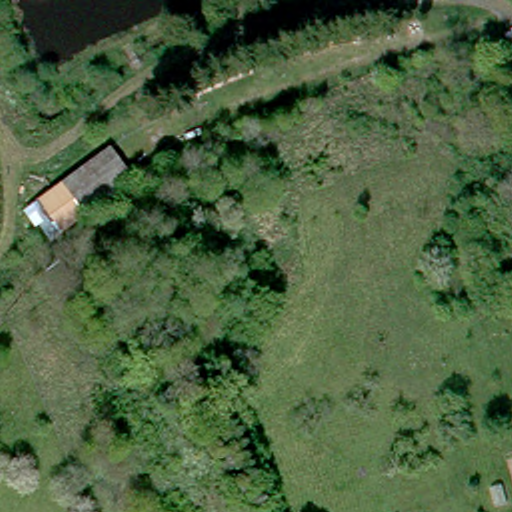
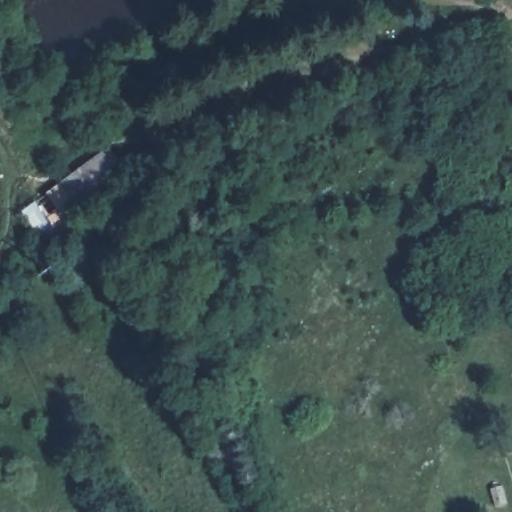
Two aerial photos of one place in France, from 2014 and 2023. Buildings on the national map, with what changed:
unchanged [(112,139),(135,170),(88,206),(65,175),(112,139)]
unchanged [(65,175),(88,206),(59,226),(37,197),(65,175)]

